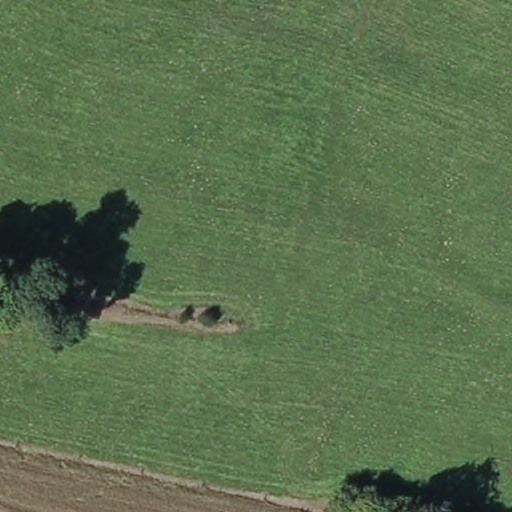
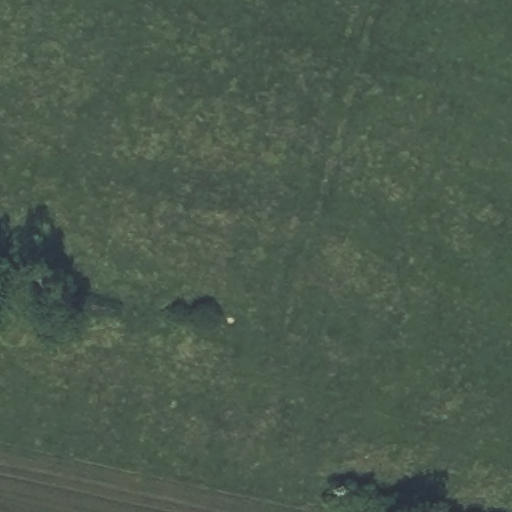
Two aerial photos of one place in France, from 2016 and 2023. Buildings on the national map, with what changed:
[]

